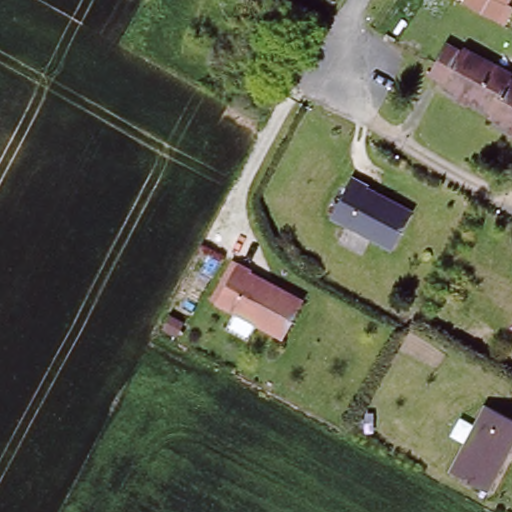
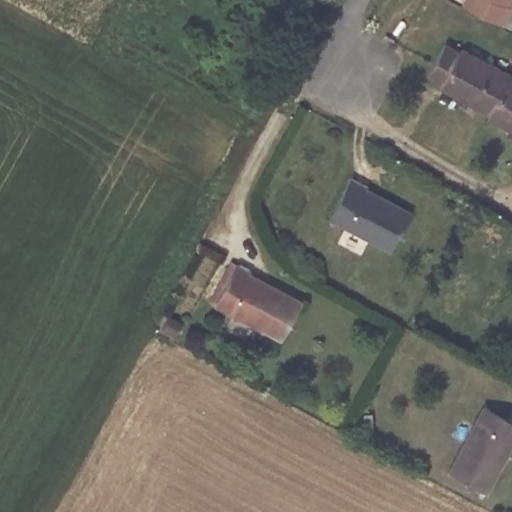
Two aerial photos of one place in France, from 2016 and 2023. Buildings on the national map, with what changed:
unchanged [(502,0),(512,0),(512,1),(510,5),(502,0)]
unchanged [(494,114),(445,86),(447,82),(432,74),(449,42),(464,51),(468,44),(512,69),(512,128),(492,117),(494,114)]
unchanged [(346,181),(404,213),(385,250),(328,218),(346,181)]
unchanged [(234,267),(296,299),(274,339),(212,309),(234,267)]
unchanged [(510,442),(483,494),(445,473),(480,412),(512,425),(512,442),(510,442)]

